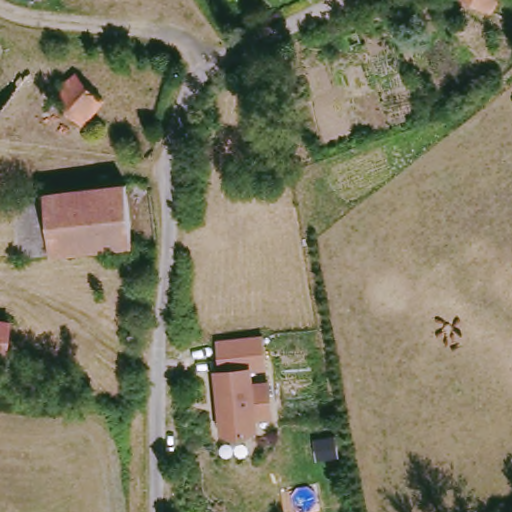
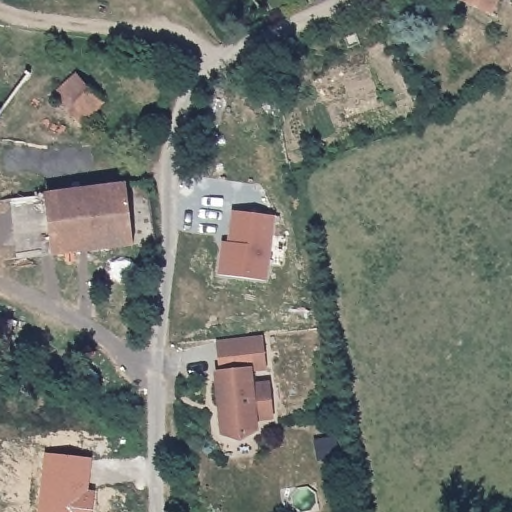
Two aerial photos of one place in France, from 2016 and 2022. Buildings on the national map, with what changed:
unchanged [(497,0),(490,14),(460,0),(497,0)]
unchanged [(103,102),(81,127),(53,99),(75,75),(103,102)]
unchanged [(14,199),(131,184),(138,245),(21,259),(14,199)]
new [(218,275),(221,242),(229,242),(233,210),(276,215),(269,280),(218,275)]
unchanged [(0,355),(0,321),(10,322),(6,356),(0,355)]
unchanged [(216,368),(219,367),(216,337),(263,332),(266,364),(250,365),(251,379),(268,377),(272,411),(256,413),(258,424),(241,438),(224,440),(216,368)]
new [(93,511),(92,512),(39,512),(46,453),(90,458),(86,491),(94,493),(93,511)]

